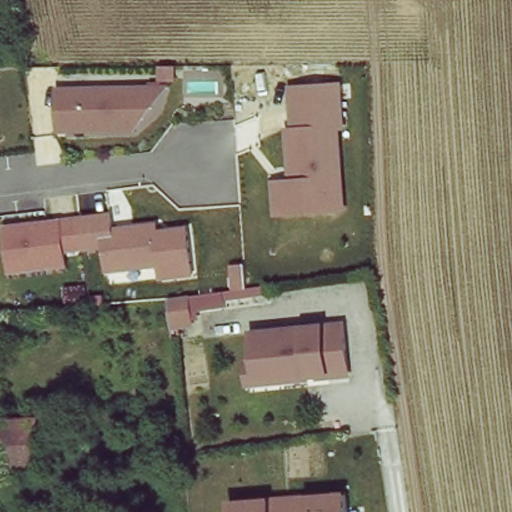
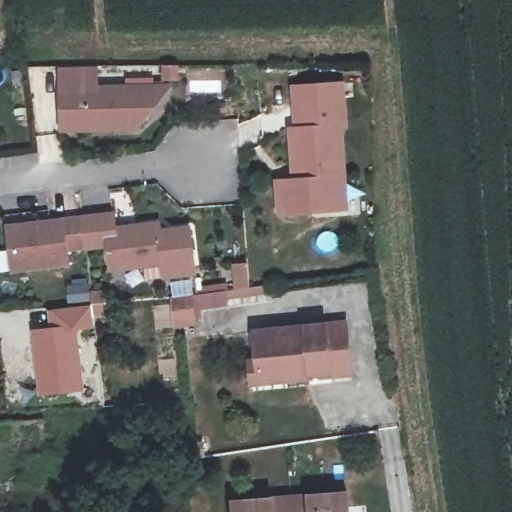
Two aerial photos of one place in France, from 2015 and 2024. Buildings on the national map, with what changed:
unchanged [(61,86),(163,82),(161,68),(181,66),(181,86),(171,86),(138,132),(58,134),(61,86)]
unchanged [(271,180),(294,176),(289,125),(297,125),(294,85),(344,81),(349,124),(342,125),(349,209),(272,215),(271,180)]
unchanged [(115,208),(119,224),(163,219),(165,228),(195,224),(201,273),(162,278),(161,267),(110,272),(106,249),(70,253),(73,268),(11,275),(6,224),(115,208)]
unchanged [(196,322),(175,324),(173,299),(192,296),(196,322)]
new [(84,390),(39,395),(31,329),(50,328),(48,311),(89,305),(93,327),(76,330),(84,390)]
unchanged [(251,371),(247,331),(339,323),(343,370),(304,373),(304,377),(280,378),(252,381),(251,371)]
unchanged [(46,420),(48,461),(0,464),(0,423),(46,420)]
unchanged [(274,494),(310,491),(352,488),(352,512),(233,512),(232,498),(274,494)]

